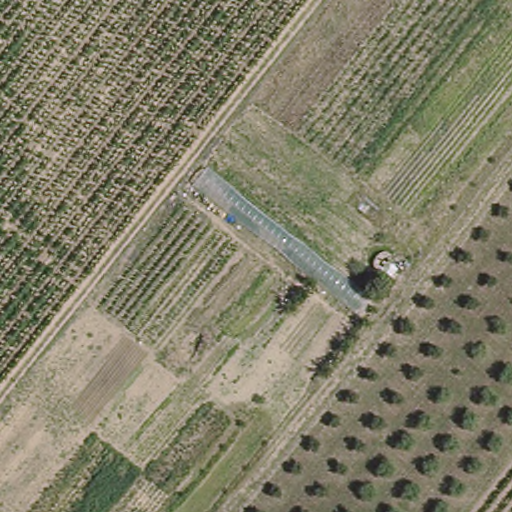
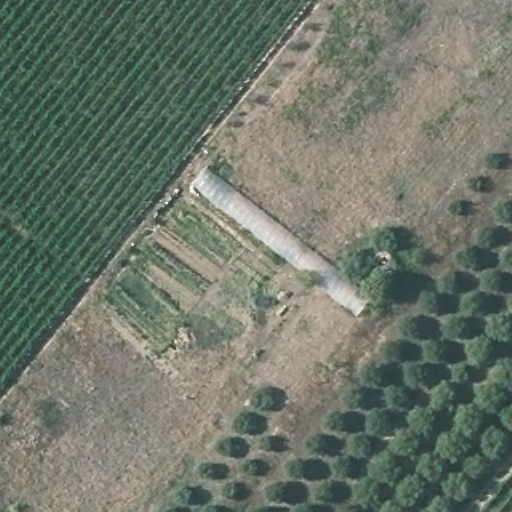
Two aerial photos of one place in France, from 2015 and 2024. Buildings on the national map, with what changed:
unchanged [(195,182),(206,167),(366,296),(356,309),(195,182)]

